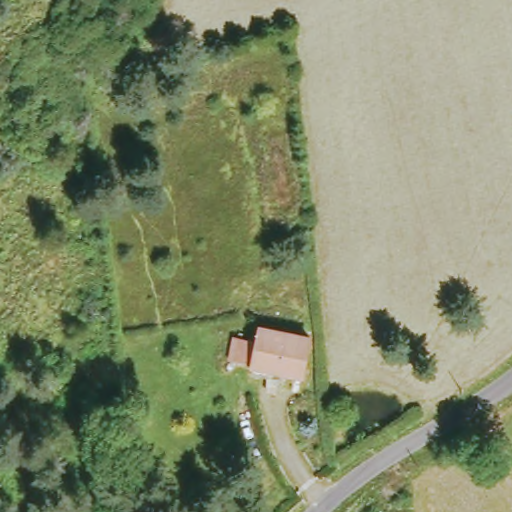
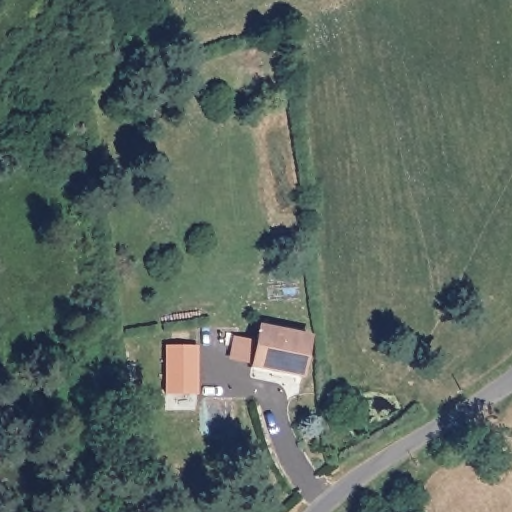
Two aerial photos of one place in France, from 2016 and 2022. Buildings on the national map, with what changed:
unchanged [(300,372),(251,364),(255,326),(305,333),(300,372)]
new [(199,346),(199,395),(165,395),(165,345),(199,346)]

